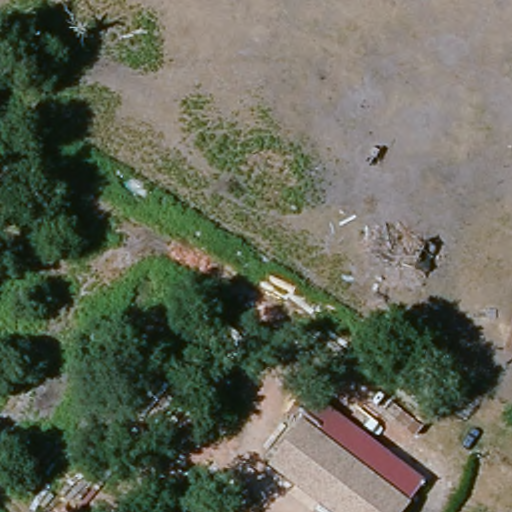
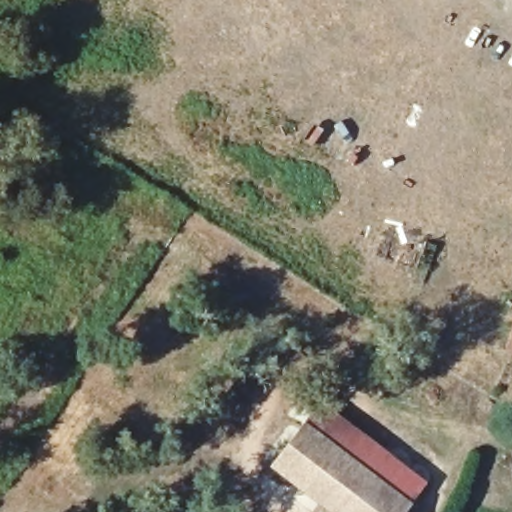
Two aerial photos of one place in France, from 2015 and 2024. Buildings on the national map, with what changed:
unchanged [(512,325),(512,348),(504,344),(512,325)]
unchanged [(302,428),(286,416),(294,405),(298,399),(315,411),(391,466),(400,473),(389,489),(302,428)]
unchanged [(302,428),(389,489),(400,473),(401,472),(405,466),(423,479),(420,484),(405,504),(400,512),(338,512),(275,467),(302,428)]

